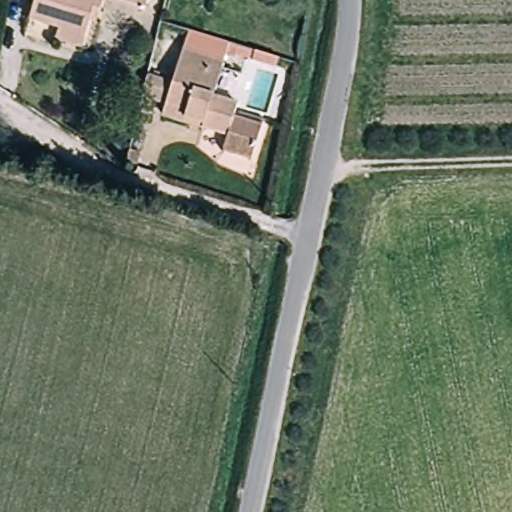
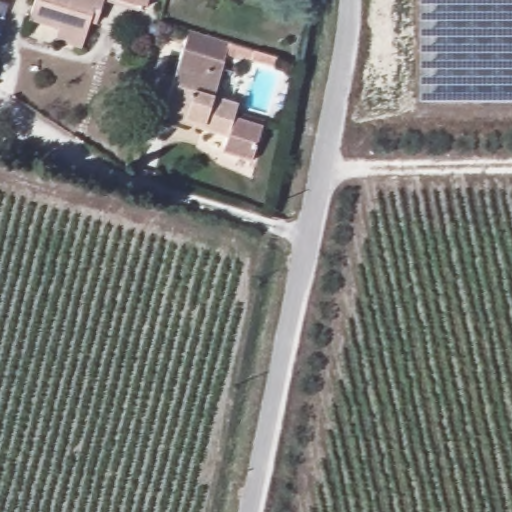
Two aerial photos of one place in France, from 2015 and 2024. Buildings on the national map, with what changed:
unchanged [(57,21),(32,16),(35,0),(109,0),(107,9),(97,7),(92,28),(89,42),(55,35),(57,21)]
unchanged [(134,0),(149,0),(148,3),(134,0)]
new [(418,0),(512,0),(512,99),(418,99),(418,0)]
unchanged [(227,73),(243,78),(236,104),(263,114),(251,159),(228,150),(227,131),(163,118),(168,99),(149,91),(153,71),(171,77),(184,43),(223,54),(227,73)]

